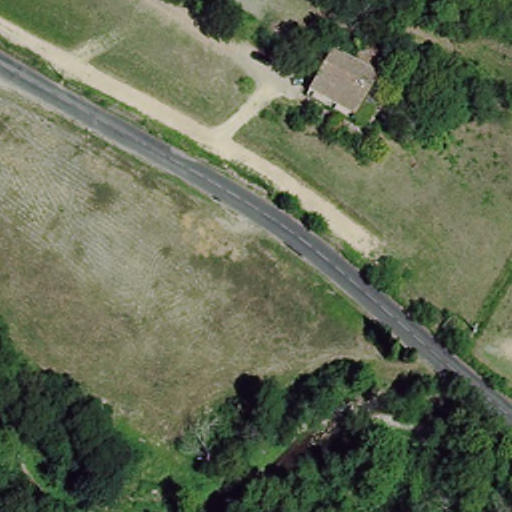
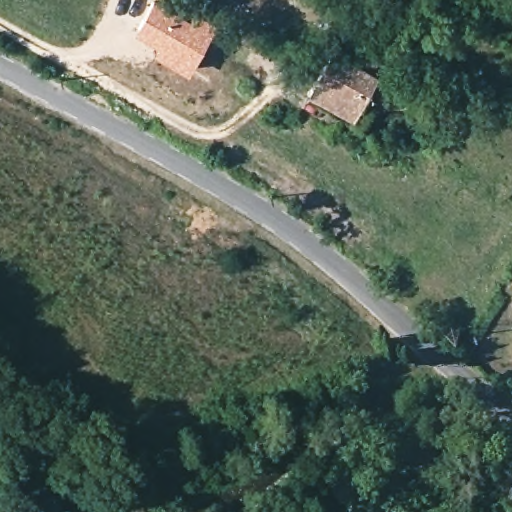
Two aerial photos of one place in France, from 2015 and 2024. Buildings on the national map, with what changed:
new [(153,0),(178,0),(218,22),(187,73),(153,52),(157,46),(134,31),(153,0)]
unchanged [(370,112),(360,128),(325,111),(349,67),(361,48),(377,57),(367,77),(374,80),(359,106),(370,112)]
unchanged [(349,67),(325,111),(303,99),(327,56),(349,67)]

